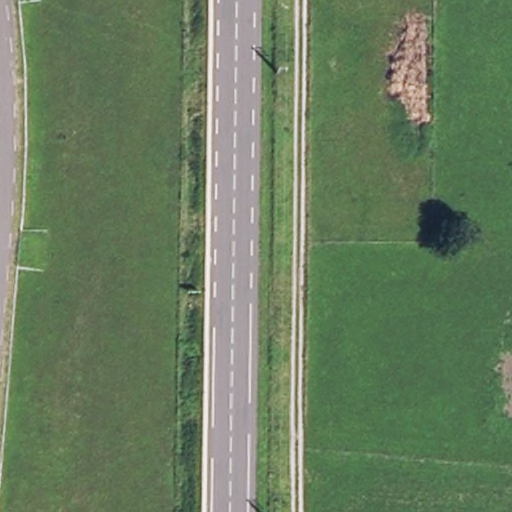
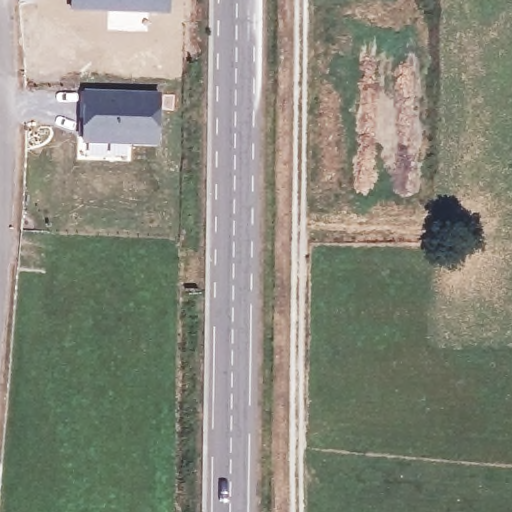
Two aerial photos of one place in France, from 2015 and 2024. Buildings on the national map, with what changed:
new [(170,0),(170,13),(69,9),(69,0),(170,0)]
new [(80,87),(160,90),(158,144),(80,141),(80,87)]

